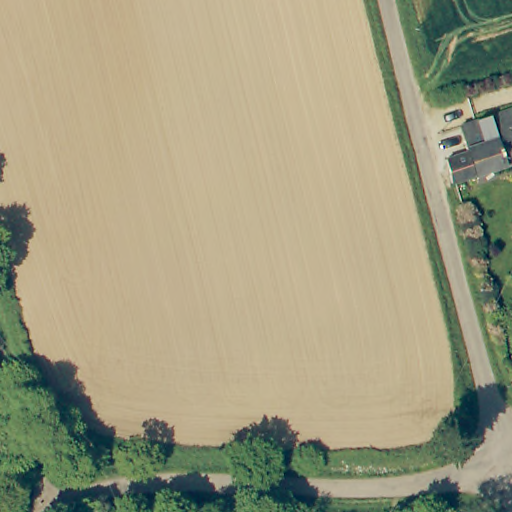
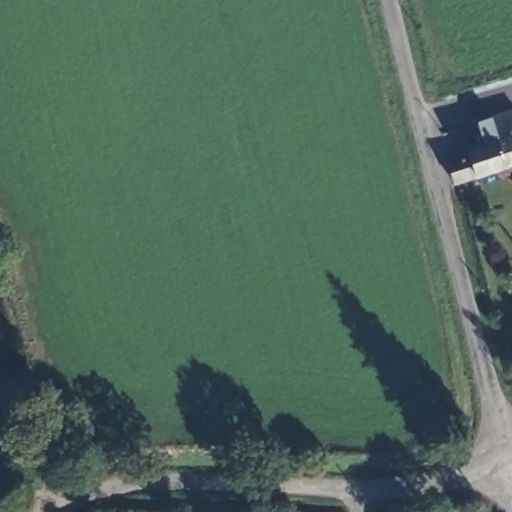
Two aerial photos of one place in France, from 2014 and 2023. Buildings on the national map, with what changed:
unchanged [(444,158),(466,151),(457,125),(511,107),(512,110),(512,161),(450,182),(444,158)]

